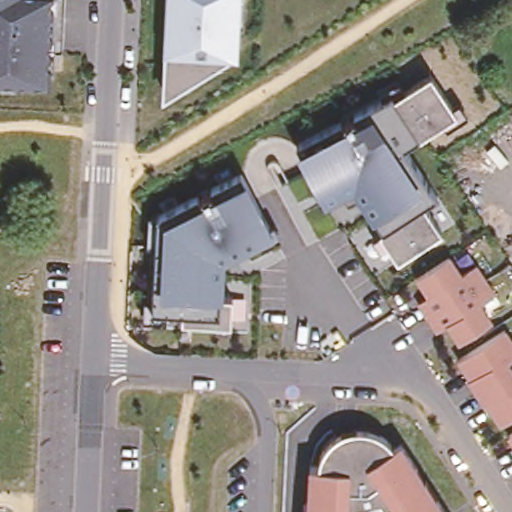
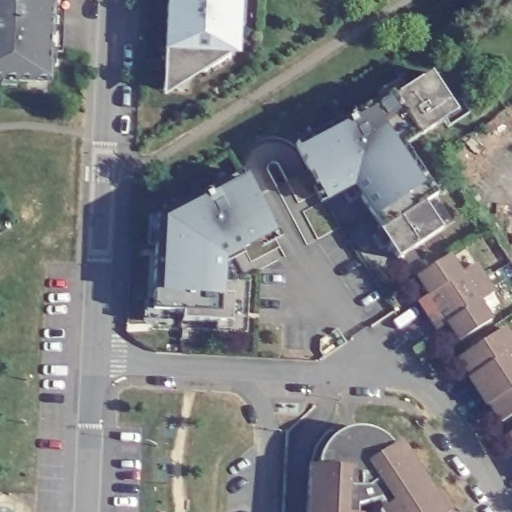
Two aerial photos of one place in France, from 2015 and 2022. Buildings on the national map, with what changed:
unchanged [(58,55),(45,55),(43,85),(0,83),(0,0),(61,0),(58,55)]
unchanged [(239,57),(231,57),(158,96),(165,0),(243,0),(239,57)]
unchanged [(397,260),(355,190),(327,205),(299,151),(412,84),(400,63),(417,52),(458,111),(407,149),(436,194),(424,202),(443,230),(397,260)]
unchanged [(279,233),(227,260),(224,294),(237,296),(235,325),(183,321),(185,312),(152,310),(153,285),(162,284),(162,224),(247,177),(279,233)]
unchanged [(424,298),(435,291),(423,273),(425,272),(455,252),(466,271),(481,261),(490,276),(433,312),(424,298)]
unchanged [(490,276),(500,290),(485,300),(497,317),(465,338),(453,320),(443,327),(433,312),(490,276)]
unchanged [(512,354),(507,357),(512,364),(512,367),(478,388),(470,375),(472,373),(459,355),(505,326),(512,337),(512,354)]
unchanged [(512,413),(502,420),(490,401),(487,402),(478,388),(512,367),(512,413)]
unchanged [(512,429),(512,435),(509,431),(512,429)]
unchanged [(310,468),(318,468),(320,462),(322,457),(324,452),(327,447),(332,442),(337,437),(342,435),(348,432),(355,431),(362,430),(368,431),(374,433),(380,436),(385,440),(390,445),(393,448),(402,444),(418,469),(427,483),(437,499),(446,512),(383,512),(385,511),(380,502),(358,508),(358,512),(308,512),(308,499),(310,468)]

